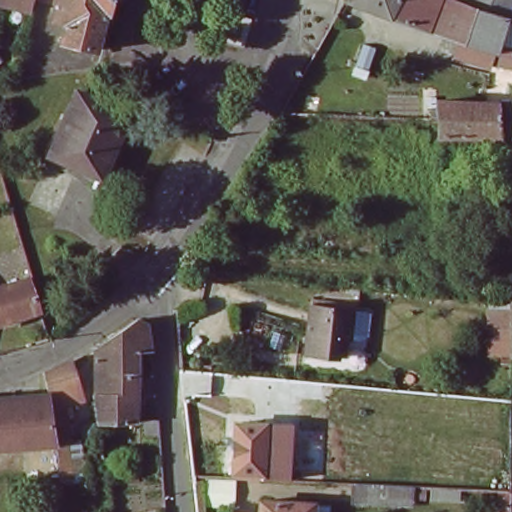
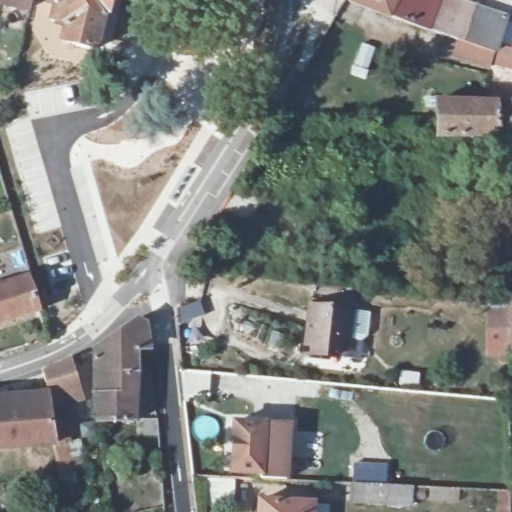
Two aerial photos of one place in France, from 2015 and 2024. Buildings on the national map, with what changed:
unchanged [(13,0),(28,0),(27,3),(13,0)]
unchanged [(110,11),(101,50),(67,41),(72,22),(56,19),(60,0),(117,0),(114,11),(110,11)]
unchanged [(417,25),(345,0),(436,0),(427,29),(417,25)]
unchanged [(462,41),(436,32),(446,0),(465,0),(474,3),(462,41)]
unchanged [(462,41),(474,3),(465,0),(510,0),(495,53),(462,41)]
demolished [(128,115),(99,178),(48,155),(77,91),(128,115)]
unchanged [(436,121),(436,102),(512,100),(512,137),(436,137),(436,121)]
unchanged [(0,323),(0,285),(29,276),(38,311),(0,323)]
unchanged [(351,341),(340,340),(338,358),(305,355),(309,308),(353,312),(351,341)]
unchanged [(92,343),(134,315),(144,318),(147,344),(136,345),(135,371),(94,367),(92,343)]
unchanged [(0,444),(0,393),(32,390),(30,374),(43,370),(46,369),(68,357),(74,398),(48,403),(54,439),(0,444)]
unchanged [(134,416),(96,415),(94,367),(135,371),(134,416)]
unchanged [(290,417),(289,444),(297,444),(296,466),(242,463),(244,414),(290,417)]
unchanged [(244,467),(244,497),(214,496),(214,466),(244,467)]
unchanged [(310,512),(257,512),(258,501),(310,503),(310,512)]

